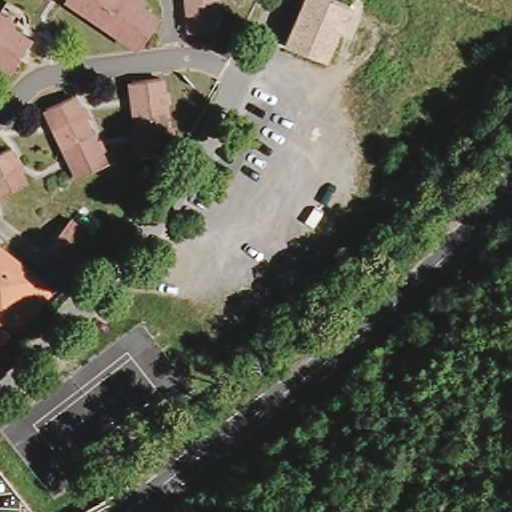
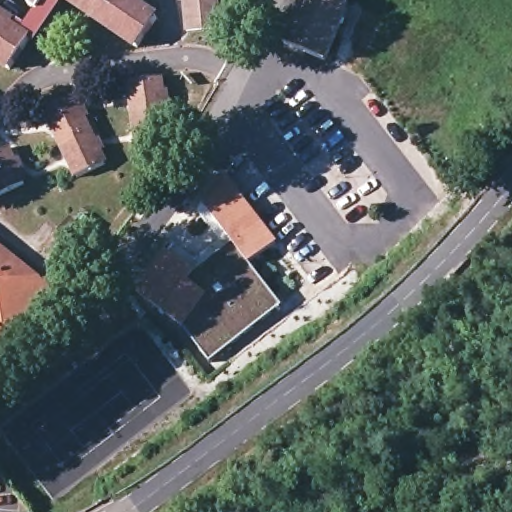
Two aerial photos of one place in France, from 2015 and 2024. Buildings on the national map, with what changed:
unchanged [(74,0),(139,0),(159,12),(142,42),(74,0)]
unchanged [(216,27),(186,30),(183,0),(213,0),(214,7),(216,27)]
unchanged [(331,60),(287,44),(303,0),(331,0),(348,6),(331,60)]
unchanged [(28,36),(11,62),(0,55),(0,17),(28,36)]
unchanged [(145,152),(132,73),(160,68),(172,146),(145,152)]
unchanged [(87,177),(54,107),(77,96),(110,166),(87,177)]
unchanged [(0,179),(0,137),(5,135),(18,170),(0,179)]
new [(185,327),(137,291),(167,250),(198,272),(233,243),(203,205),(223,171),(278,241),(250,263),(281,305),(210,360),(185,327)]
unchanged [(90,232),(67,260),(50,244),(72,217),(90,232)]
unchanged [(38,273),(3,315),(0,313),(0,241),(38,273)]

